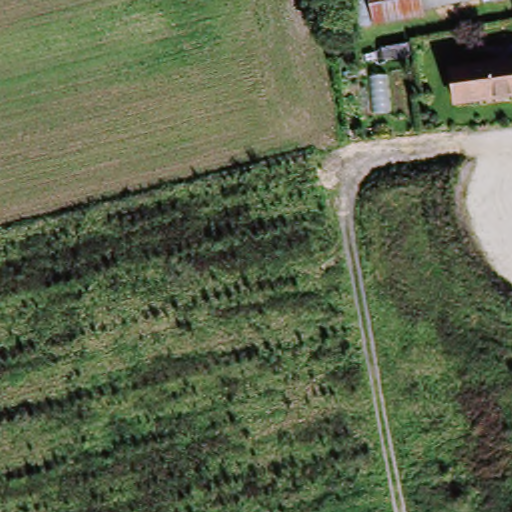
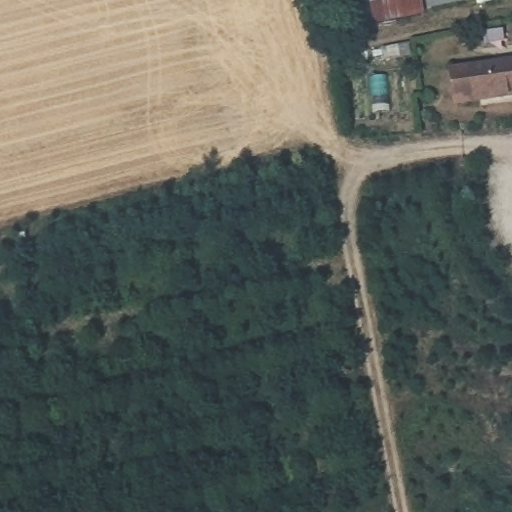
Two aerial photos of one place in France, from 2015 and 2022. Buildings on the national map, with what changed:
unchanged [(346,27),(339,0),(421,0),(422,9),(423,16),(346,27)]
unchanged [(481,0),(422,9),(421,0),(481,0)]
unchanged [(487,0),(512,0),(512,2),(487,6),(487,0)]
unchanged [(512,64),(512,96),(464,98),(463,65),(512,64)]

